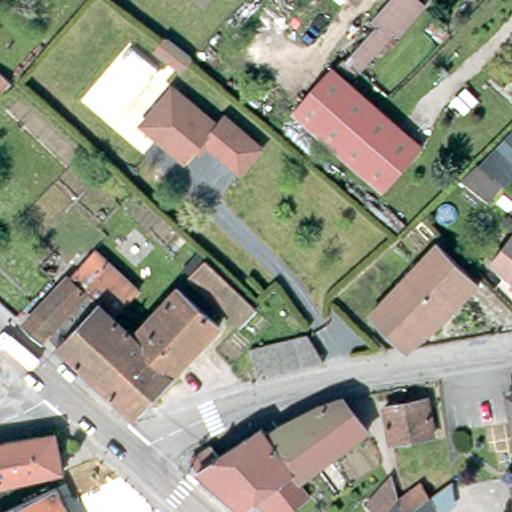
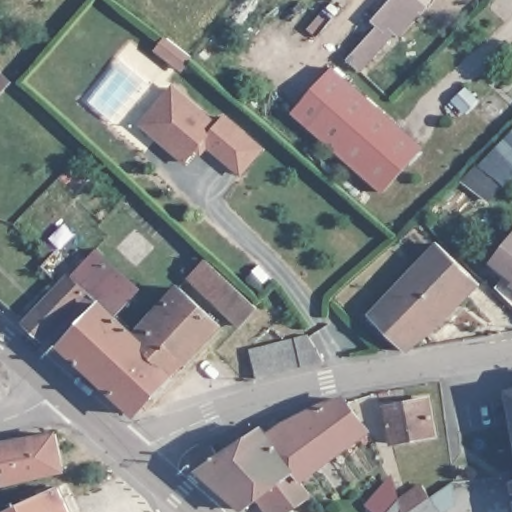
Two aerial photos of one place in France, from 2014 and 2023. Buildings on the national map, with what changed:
unchanged [(395,29),(360,67),(348,55),(377,22),(372,17),(387,0),(424,0),(425,1),(398,32),(395,29)]
unchanged [(176,70),(152,51),(162,39),(187,57),(176,70)]
unchanged [(292,113),(332,68),(378,109),(336,152),(292,113)]
unchanged [(0,95),(0,72),(12,83),(0,95)]
unchanged [(256,149),(236,174),(199,142),(181,163),(151,137),(137,125),(168,88),(212,125),(219,118),(256,149)]
unchanged [(378,109),(413,140),(422,149),(382,193),(336,152),(378,109)]
unchanged [(466,181),(483,165),(484,165),(512,135),(512,184),(510,186),(509,185),(495,203),(466,181)]
unchanged [(491,262),(512,237),(512,279),(491,262)]
unchanged [(484,280),(410,347),(405,342),(375,311),(443,239),(484,280)]
unchanged [(141,337),(173,369),(134,410),(128,405),(60,341),(47,329),(42,335),(25,320),(70,271),(95,245),(139,286),(115,312),(135,331),(141,337)]
unchanged [(240,327),(190,278),(207,260),(241,293),(257,308),(240,327)]
unchanged [(179,283),(220,321),(173,369),(141,337),(135,331),(179,283)]
unchanged [(324,361),(257,379),(249,350),(308,335),(324,361)]
unchanged [(427,395),(434,430),(397,438),(391,439),(384,403),(427,395)]
unchanged [(510,399),(512,399),(512,407),(510,399)]
unchanged [(346,403),(368,431),(300,481),(268,436),(278,428),(282,425),(321,406),(343,400),(346,403)]
unchanged [(289,512),(267,512),(258,500),(243,510),(200,472),(190,460),(212,447),(220,458),(262,428),(268,436),(300,481),(311,496),(289,512)]
unchanged [(0,486),(0,443),(56,434),(63,471),(52,474),(0,486)]
unchanged [(369,503),(394,476),(398,497),(400,495),(422,480),(430,493),(452,477),(454,482),(456,500),(443,510),(444,512),(378,512),(369,503)]
unchanged [(57,487),(69,512),(5,512),(57,487)]

